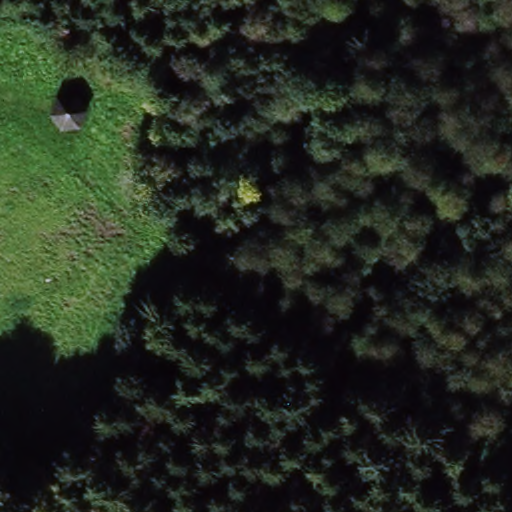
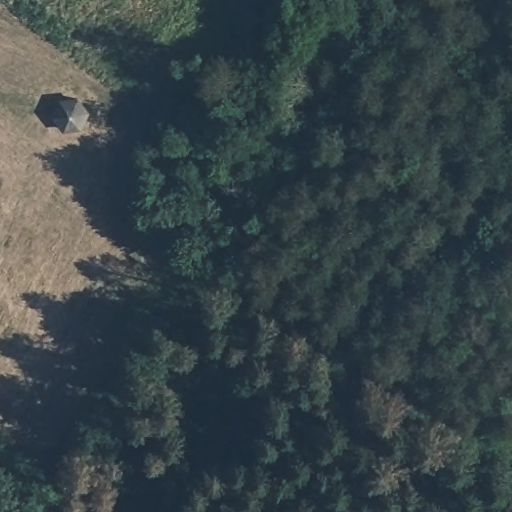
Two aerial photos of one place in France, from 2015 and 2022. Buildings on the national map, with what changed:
unchanged [(95,106),(90,122),(75,130),(61,128),(52,112),(62,94),(76,93),(95,106)]

